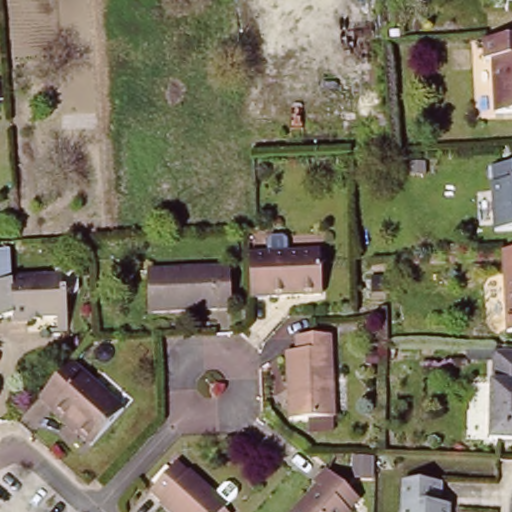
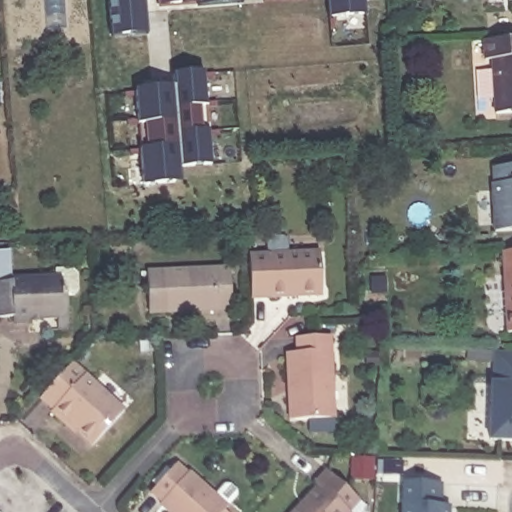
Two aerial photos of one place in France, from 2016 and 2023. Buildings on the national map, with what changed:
new [(149,35),(112,38),(108,0),(143,0),(149,35)]
new [(243,2),(160,6),(159,0),(243,0),(243,2)]
new [(329,19),(327,0),(365,0),(366,15),(329,19)]
unchanged [(495,64),(487,63),(486,46),(512,44),(512,116),(498,116),(495,64)]
new [(206,106),(208,130),(211,166),(181,169),(182,182),(144,185),(137,90),(176,87),(175,75),(203,73),(206,106)]
unchanged [(494,232),(491,185),(493,185),(492,166),(512,166),(512,231),(494,232)]
unchanged [(6,242),(9,277),(0,278),(0,243),(6,242)]
unchanged [(318,247),(320,290),(250,294),(248,250),(318,247)]
unchanged [(503,251),(512,250),(512,330),(507,330),(503,251)]
unchanged [(149,312),(147,272),(228,267),(230,308),(149,312)]
unchanged [(9,277),(40,276),(40,271),(53,270),(59,277),(60,293),(58,298),(52,298),(52,318),(17,320),(17,323),(0,323),(0,278),(9,277)]
unchanged [(288,426),(286,358),(296,358),(296,343),(330,341),(333,425),(295,426),(288,426)]
unchanged [(70,353),(121,401),(87,438),(63,416),(61,418),(47,405),(49,403),(36,390),(70,353)]
unchanged [(488,443),(490,387),(493,387),(493,356),(512,357),(512,444),(488,443)]
unchanged [(159,498),(148,488),(173,462),(184,472),(187,470),(224,505),(220,510),(222,512),(171,512),(157,500),(159,498)]
unchanged [(311,481),(322,469),(357,500),(346,511),(347,512),(288,512),(314,484),(311,481)]
unchanged [(439,505),(448,506),(447,512),(400,512),(400,482),(440,484),(439,505)]

